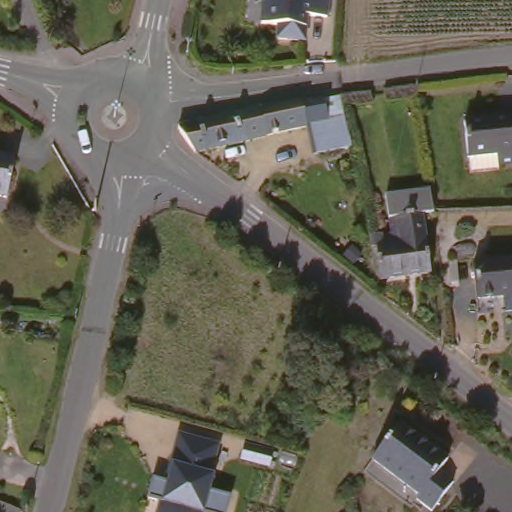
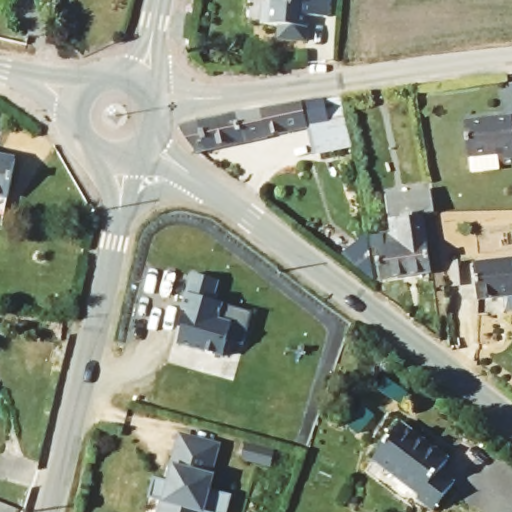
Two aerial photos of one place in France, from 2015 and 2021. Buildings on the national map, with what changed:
unchanged [(309,15),(308,40),(278,37),(279,22),(259,20),(260,5),(270,0),(336,0),(334,17),(309,15)]
unchanged [(294,107),(339,100),(348,150),(320,155),(316,129),(195,159),(174,130),(233,117),(237,121),(294,107)]
unchanged [(476,167),(474,152),(473,152),(468,122),(512,117),(512,160),(502,161),(502,164),(476,167)]
unchanged [(0,161),(14,164),(7,200),(0,199),(0,161)]
unchanged [(398,251),(395,240),(393,225),(388,225),(384,200),(430,193),(434,217),(424,219),(428,246),(398,251)]
unchanged [(398,251),(428,246),(432,278),(385,286),(380,254),(387,252),(386,242),(395,240),(398,251)]
unchanged [(474,268),(512,264),(512,301),(479,303),(474,268)]
new [(187,272),(214,278),(208,299),(248,308),(239,342),(223,338),(219,354),(175,343),(179,327),(174,326),(178,309),(187,272)]
unchanged [(393,423),(449,462),(440,474),(454,485),(434,512),(427,512),(414,501),(417,497),(366,460),(393,423)]
unchanged [(224,451),(207,512),(151,512),(172,435),(224,451)]

